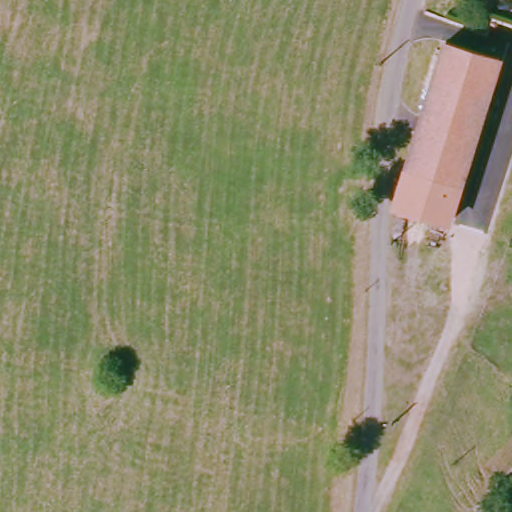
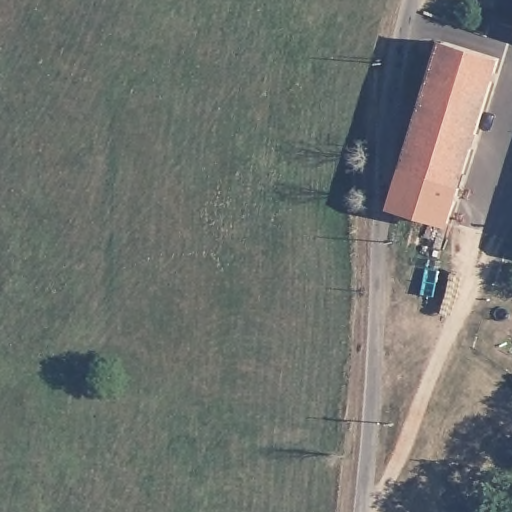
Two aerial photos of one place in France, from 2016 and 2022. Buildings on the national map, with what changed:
unchanged [(499,62),(444,222),(390,202),(442,43),(499,62)]

